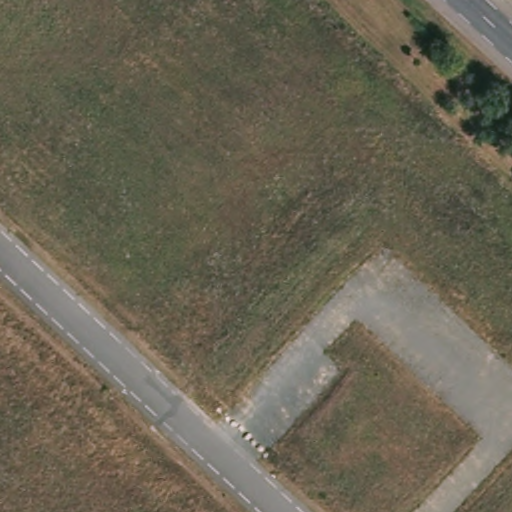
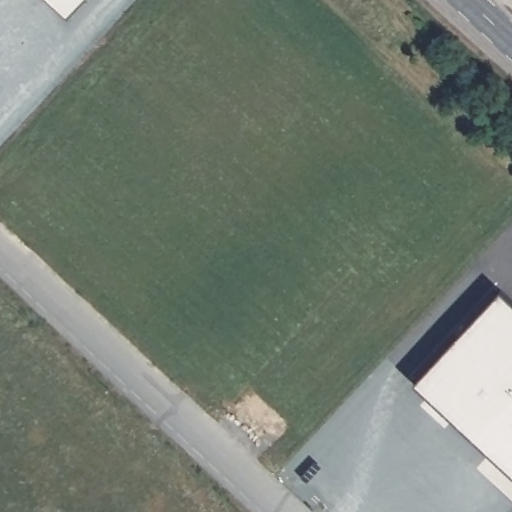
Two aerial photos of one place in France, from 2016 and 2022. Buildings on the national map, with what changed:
new [(50,0),(82,0),(67,16),(50,0)]
new [(501,291),(512,301),(512,476),(413,384),(501,291)]

